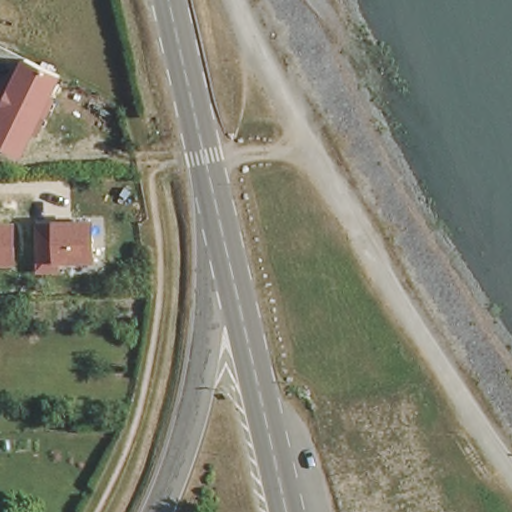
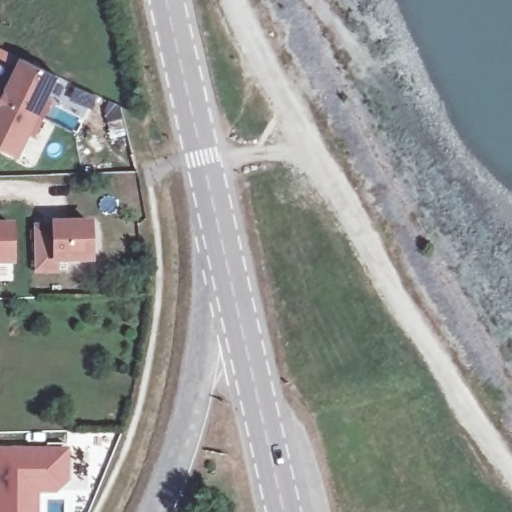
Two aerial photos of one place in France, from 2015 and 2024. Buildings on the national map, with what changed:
unchanged [(50,96),(55,99),(37,137),(32,135),(22,157),(0,147),(0,103),(22,59),(59,78),(50,96)]
unchanged [(52,228),(52,221),(94,221),(94,262),(59,264),(57,274),(36,274),(36,228),(52,228)]
unchanged [(15,265),(0,265),(0,223),(15,223),(15,265)]
new [(70,482),(57,494),(40,494),(39,512),(0,512),(0,448),(70,448),(70,482)]

